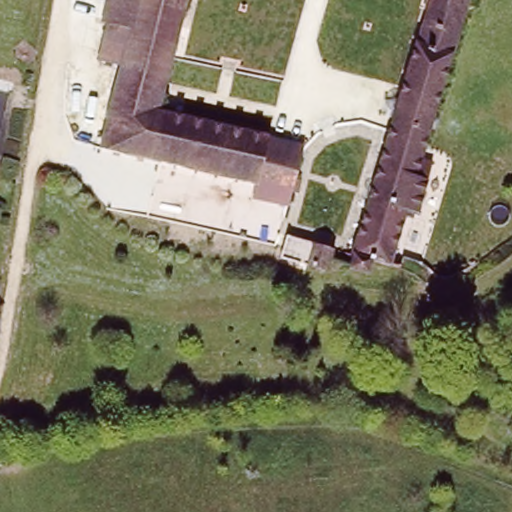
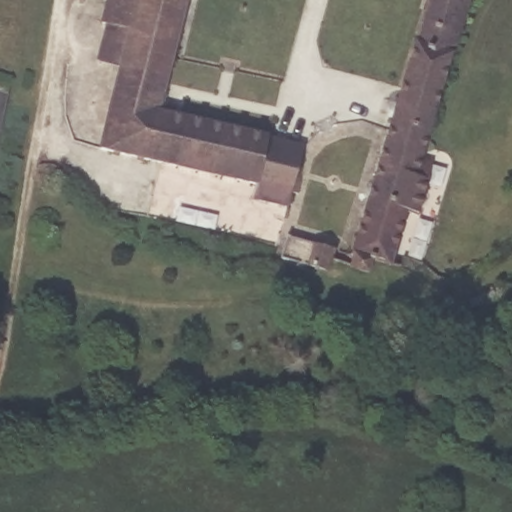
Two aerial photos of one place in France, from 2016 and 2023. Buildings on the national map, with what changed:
unchanged [(160,114),(273,140),(263,187),(82,145),(111,41),(105,39),(109,26),(117,0),(188,0),(160,114)]
unchanged [(371,275),(350,269),(431,0),(483,0),(475,25),(470,24),(426,170),(437,173),(422,227),(413,225),(400,271),(378,266),(375,276),(371,275)]
unchanged [(335,255),(333,265),(313,261),(285,255),(290,235),(317,240),(338,245),(335,255)]

